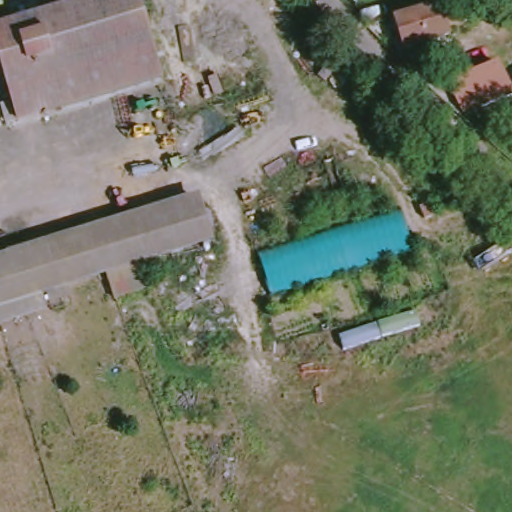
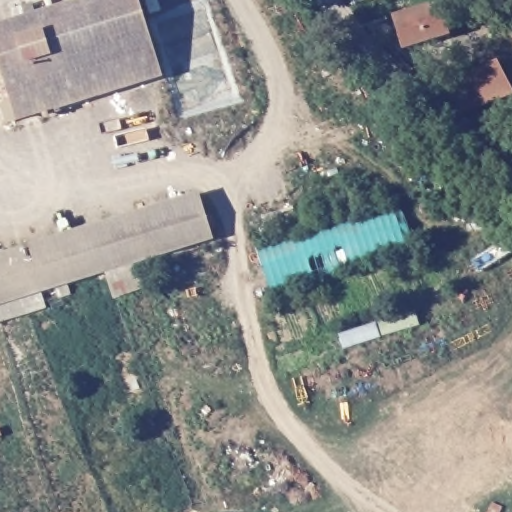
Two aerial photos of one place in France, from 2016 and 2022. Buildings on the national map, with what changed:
unchanged [(167,78),(22,121),(0,49),(0,31),(102,0),(142,0),(167,78)]
unchanged [(474,11),(487,7),(492,22),(478,27),(452,35),(454,43),(406,54),(396,20),(444,6),(447,18),(474,11)]
unchanged [(214,244),(0,310),(0,264),(201,202),(214,244)]
unchanged [(402,207),(417,248),(275,294),(262,253),(402,207)]

